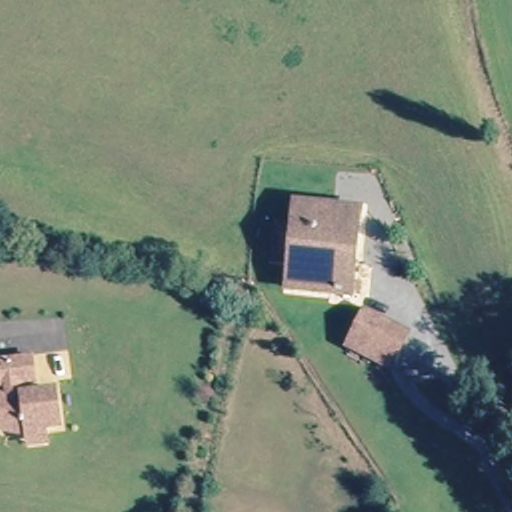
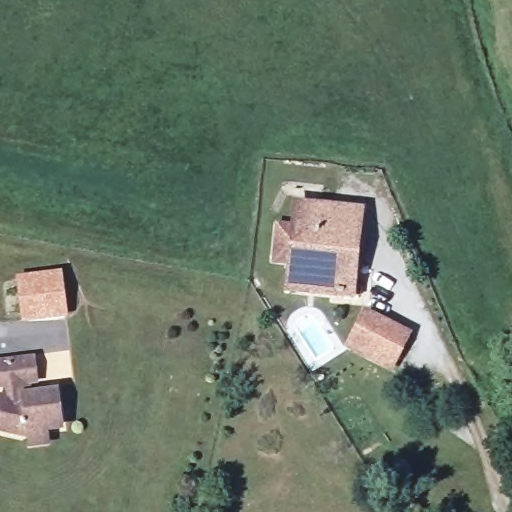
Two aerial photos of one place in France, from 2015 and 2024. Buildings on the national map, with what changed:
unchanged [(358,209),(357,278),(366,278),(366,295),(335,295),(308,295),(293,294),(293,292),(293,287),(294,266),(269,266),(271,233),(295,234),(295,208),(358,209)]
new [(67,315),(22,321),(15,275),(62,268),(67,315)]
unchanged [(412,331),(394,370),(346,352),(367,310),(412,331)]
unchanged [(39,381),(28,382),(30,399),(61,395),(66,440),(59,440),(32,442),(33,447),(0,438),(0,400),(8,400),(7,385),(0,385),(0,358),(35,355),(39,381)]

